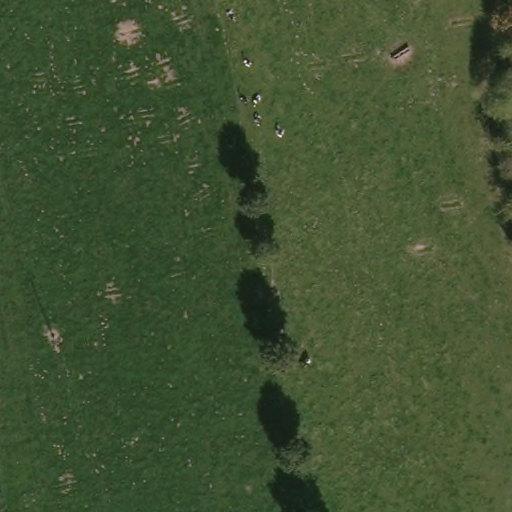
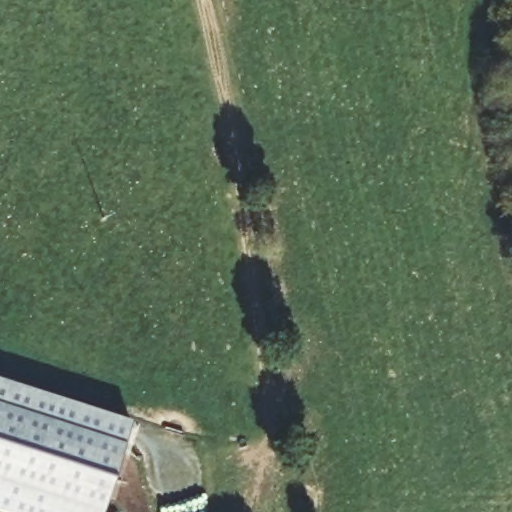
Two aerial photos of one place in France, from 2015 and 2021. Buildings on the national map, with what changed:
new [(131,421),(102,512),(6,512),(0,510),(0,379),(131,421)]

